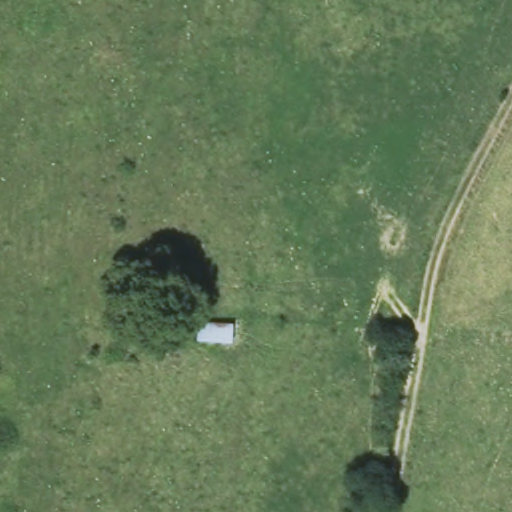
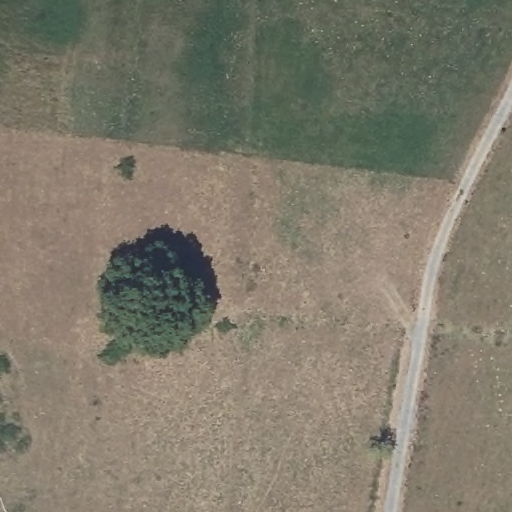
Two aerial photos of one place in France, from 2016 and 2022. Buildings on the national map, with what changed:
unchanged [(235,327),(233,341),(199,338),(199,323),(235,327)]

